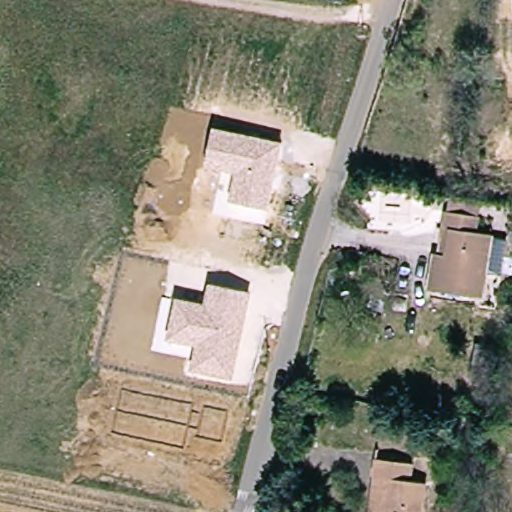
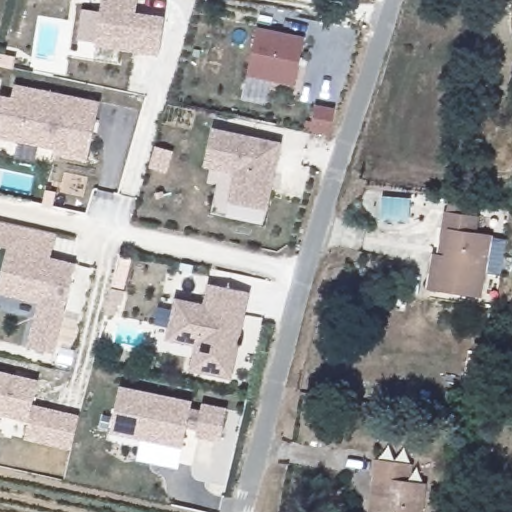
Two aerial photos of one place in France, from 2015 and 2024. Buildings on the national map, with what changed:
new [(164,18),(159,58),(95,48),(102,0),(138,0),(136,13),(164,18)]
new [(258,28),(306,38),(295,88),(248,78),(258,28)]
new [(0,139),(0,100),(1,96),(11,98),(15,85),(101,102),(87,165),(53,156),(54,151),(0,139)]
unchanged [(205,168),(211,131),(281,145),(266,209),(229,201),(235,174),(205,168)]
unchanged [(482,221),(482,235),(497,237),(489,299),(440,295),(444,259),(448,231),(452,231),(454,218),(482,221)]
new [(0,249),(0,223),(56,236),(50,258),(76,264),(54,355),(26,349),(38,304),(0,295),(0,281),(8,251),(0,249)]
unchanged [(208,285),(249,295),(231,381),(190,372),(194,347),(166,340),(174,299),(203,305),(208,285)]
new [(80,417),(71,451),(24,439),(28,424),(0,416),(0,372),(38,381),(33,405),(80,417)]
new [(228,410),(219,444),(196,439),(198,430),(186,428),(181,448),(110,434),(119,386),(191,401),(190,409),(202,411),(203,404),(228,410)]
unchanged [(416,464),(417,480),(429,481),(425,512),(369,512),(373,477),(376,460),(416,464)]

